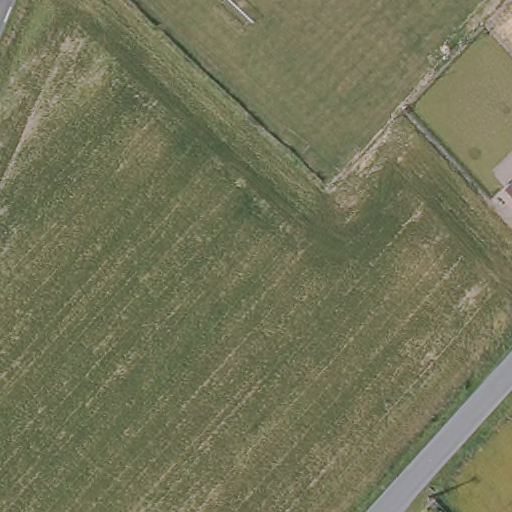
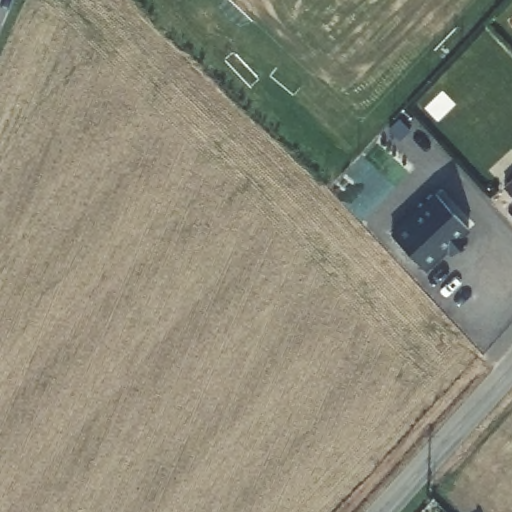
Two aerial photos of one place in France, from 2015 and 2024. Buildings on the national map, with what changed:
unchanged [(506,188),(512,183),(512,195),(506,188)]
new [(390,234),(435,193),(470,230),(462,238),(467,242),(452,255),(447,251),(426,271),(390,234)]

